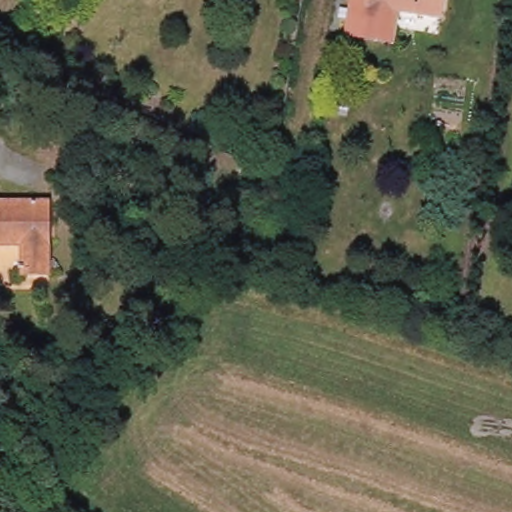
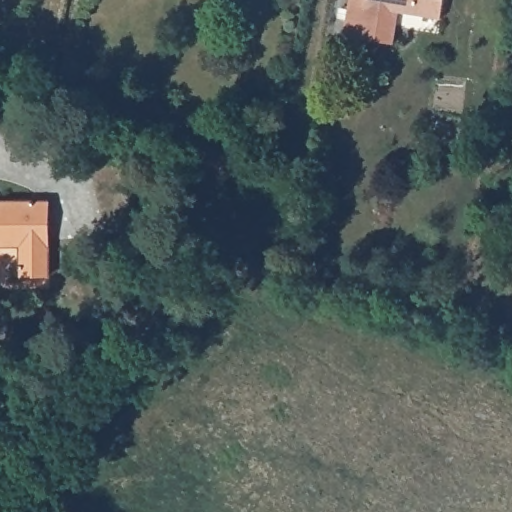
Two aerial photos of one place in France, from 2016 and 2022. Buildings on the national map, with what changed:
unchanged [(387,12),(382,44),(333,36),(338,0),(443,0),(441,19),(387,12)]
unchanged [(46,280),(19,280),(20,247),(0,247),(0,204),(46,204),(46,280)]

